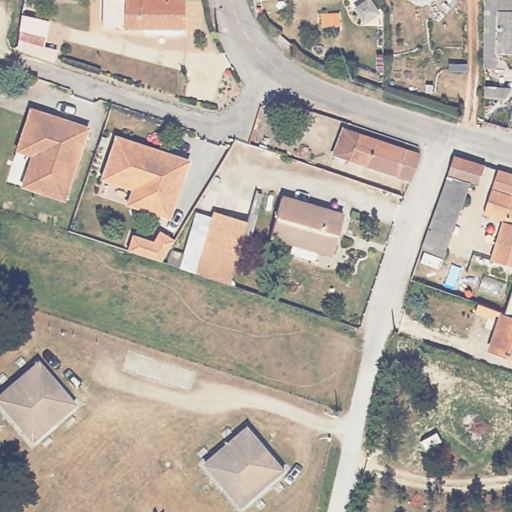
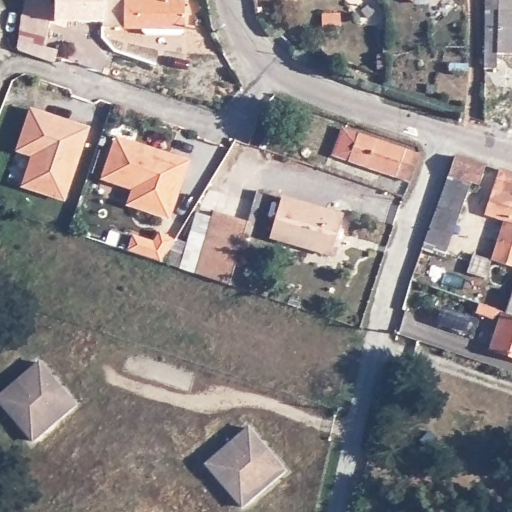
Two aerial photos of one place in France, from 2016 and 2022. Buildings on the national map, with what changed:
unchanged [(185,28),(181,31),(146,31),(143,27),(143,24),(104,24),(104,0),(185,0),(185,28)]
unchanged [(433,1),(409,0),(434,0),(433,1)]
unchanged [(512,53),(498,52),(497,67),(485,67),(487,0),(512,0),(512,53)]
unchanged [(320,22),(310,23),(310,9),(320,8),(320,22)]
unchanged [(48,23),(44,37),(20,29),(22,13),(48,23)]
unchanged [(56,51),(52,62),(17,50),(18,38),(56,51)]
unchanged [(60,202),(20,188),(30,158),(15,152),(18,143),(27,118),(29,111),(68,125),(85,131),(60,202)]
unchanged [(409,179),(333,152),(341,127),(418,152),(409,179)]
unchanged [(134,187),(104,176),(118,135),(189,160),(183,177),(169,217),(162,214),(138,206),(128,203),(134,187)]
unchanged [(491,163),(484,184),(475,181),(463,213),(441,205),(459,153),(491,163)]
unchanged [(502,220),(483,213),(498,166),(512,171),(512,266),(489,259),(502,220)]
unchanged [(331,253),(270,234),(282,195),(343,214),(331,253)]
unchanged [(463,213),(449,254),(426,246),(441,205),(463,213)]
unchanged [(248,221),(229,284),(194,273),(214,210),(248,221)]
unchanged [(155,242),(162,232),(176,241),(162,262),(129,251),(135,235),(155,242)]
unchanged [(512,317),(512,357),(489,349),(501,313),(504,314),(512,317)]
unchanged [(74,401),(31,438),(0,400),(0,391),(37,358),(74,401)]
unchanged [(286,470),(243,507),(207,464),(251,428),(286,470)]

